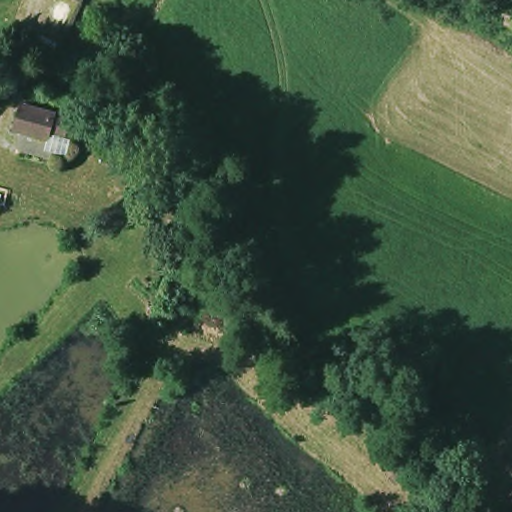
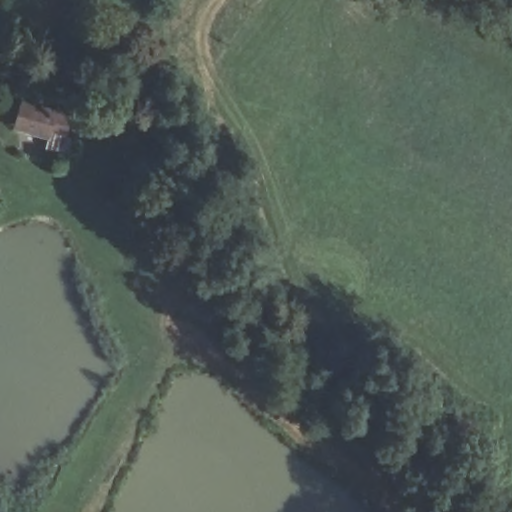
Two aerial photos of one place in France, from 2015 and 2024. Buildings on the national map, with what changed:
unchanged [(23,94),(65,105),(66,105),(67,105),(65,126),(51,123),(50,130),(19,123),(23,94)]

